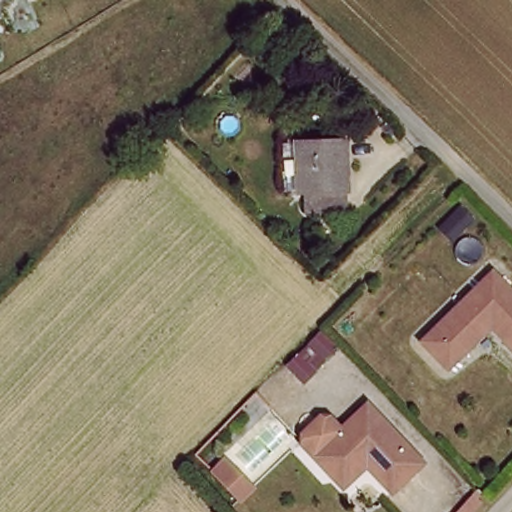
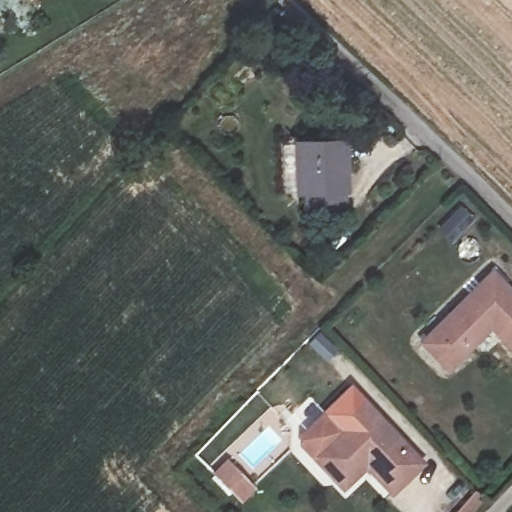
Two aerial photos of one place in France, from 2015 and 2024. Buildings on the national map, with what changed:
unchanged [(305,209),(304,190),(296,190),(295,141),(346,140),(349,188),(350,206),(305,209)]
unchanged [(503,335),(508,330),(499,321),(451,368),(426,343),(494,276),(512,294),(512,345),(503,335)]
unchanged [(339,475),(315,450),(366,398),(422,456),(389,487),(368,464),(347,483),(339,475)]

